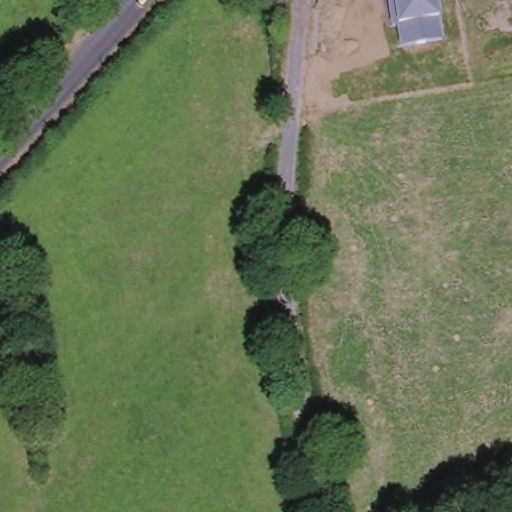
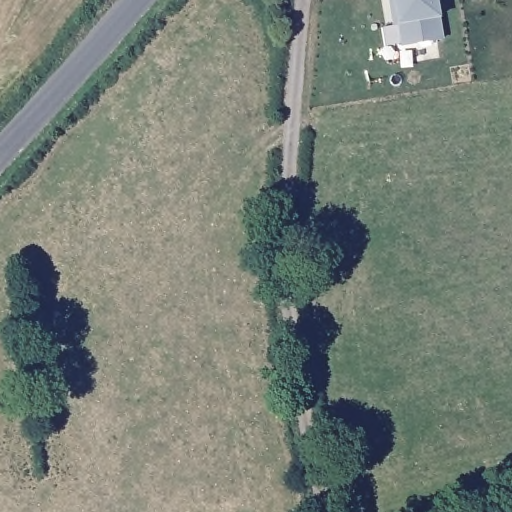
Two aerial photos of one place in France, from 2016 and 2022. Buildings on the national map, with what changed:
unchanged [(439,20),(443,41),(399,49),(395,26),(390,27),(387,0),(436,0),(439,20)]

